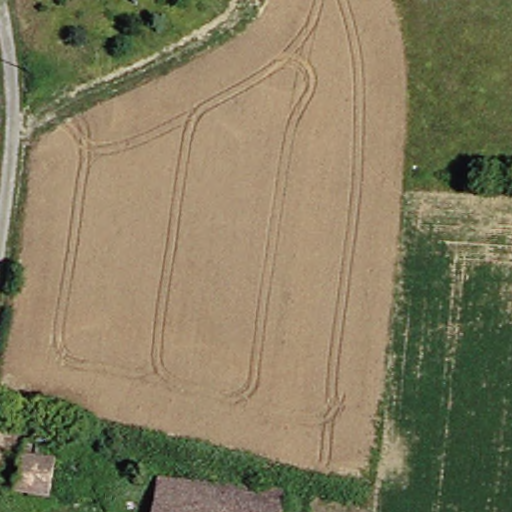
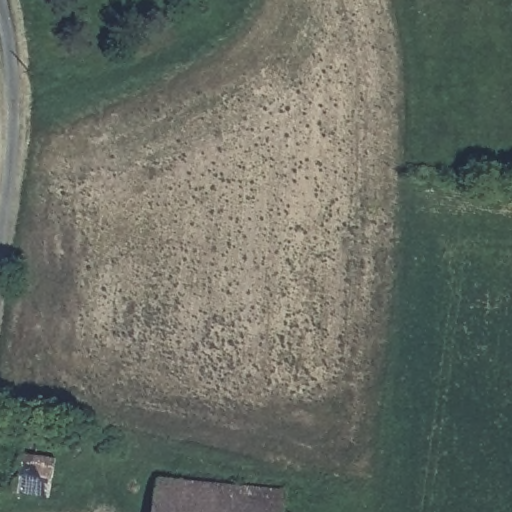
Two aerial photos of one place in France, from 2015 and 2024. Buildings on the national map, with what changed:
unchanged [(53,492),(24,487),(29,456),(58,461),(53,492)]
unchanged [(161,512),(164,475),(291,488),(289,512),(161,512)]

